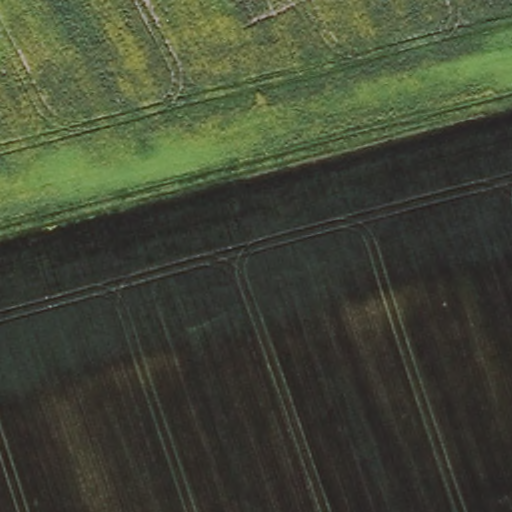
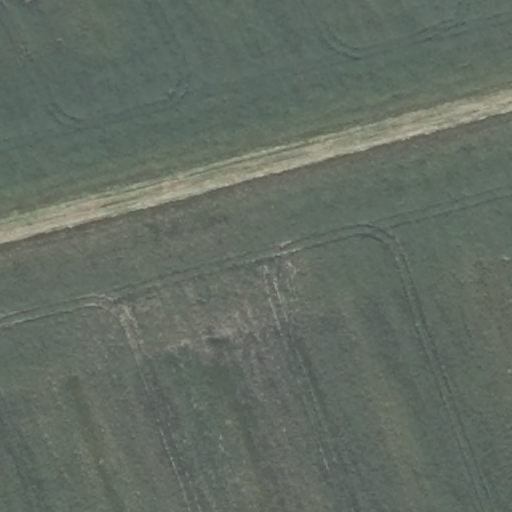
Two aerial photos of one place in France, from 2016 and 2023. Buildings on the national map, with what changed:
[]

